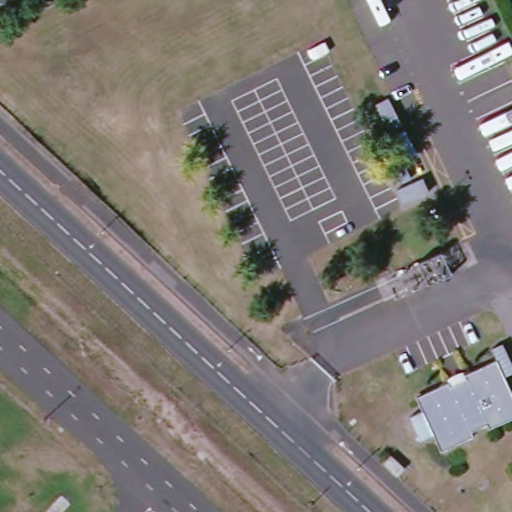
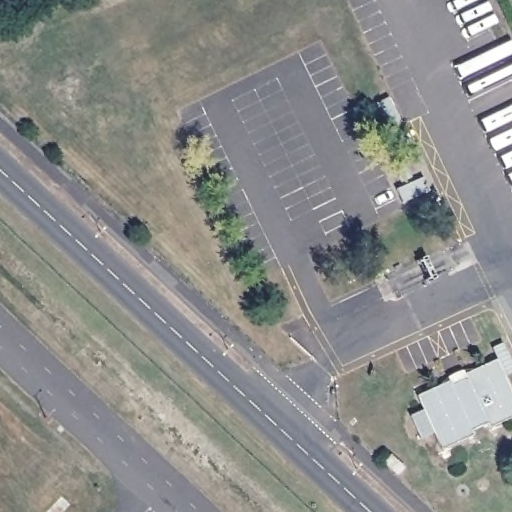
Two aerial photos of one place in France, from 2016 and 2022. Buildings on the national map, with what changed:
unchanged [(442,284),(411,292),(400,264),(430,256),(442,284)]
unchanged [(447,383),(448,388),(465,380),(464,375),(496,362),(512,398),(512,420),(439,452),(415,397),(447,383)]
unchanged [(384,458),(391,451),(405,464),(398,471),(384,458)]

